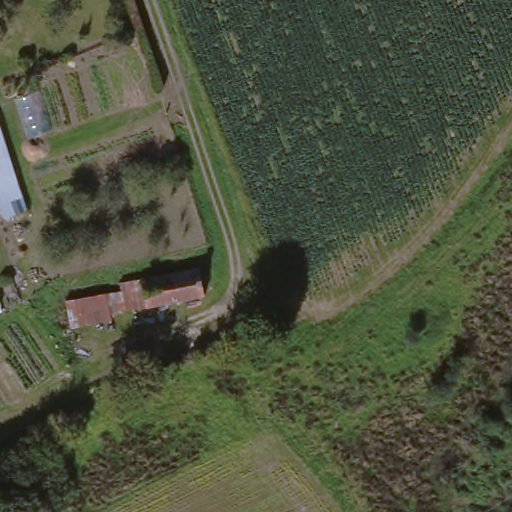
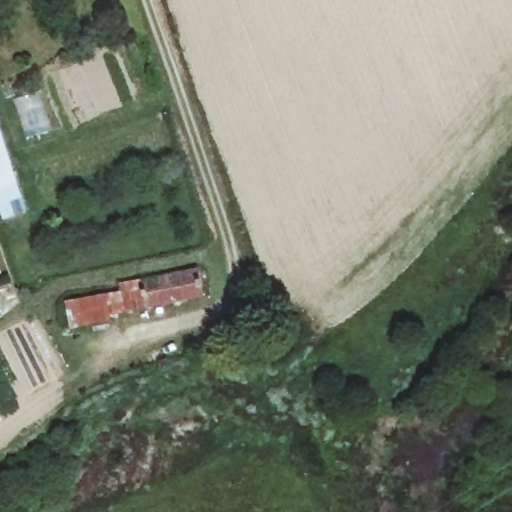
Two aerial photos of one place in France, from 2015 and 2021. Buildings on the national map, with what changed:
unchanged [(0,224),(0,139),(23,214),(0,224)]
unchanged [(199,301),(64,335),(60,306),(113,295),(115,286),(193,273),(199,301)]

